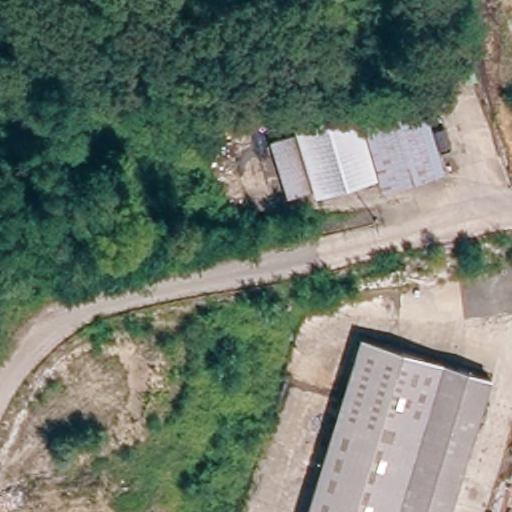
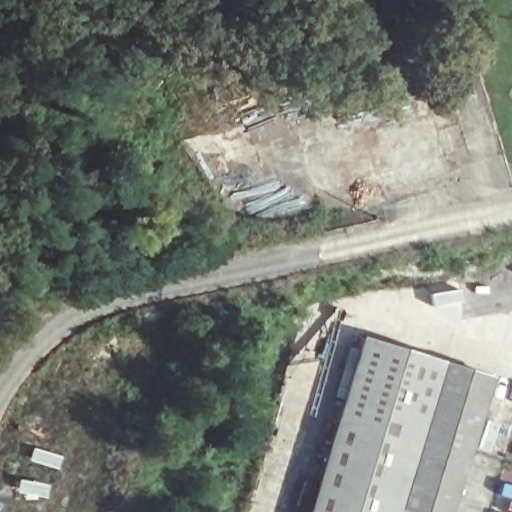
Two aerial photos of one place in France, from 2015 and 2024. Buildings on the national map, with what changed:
demolished [(510,0),(512,0),(512,5),(510,0)]
demolished [(347,95),(356,125),(294,144),(288,115),(347,95)]
demolished [(443,171),(376,192),(372,181),(319,196),(317,189),(287,199),(274,150),(294,144),(356,125),(424,105),(443,171)]
unchanged [(461,470),(489,478),(480,512),(419,512),(396,506),(394,512),(308,512),(359,335),(487,374),(461,470)]

